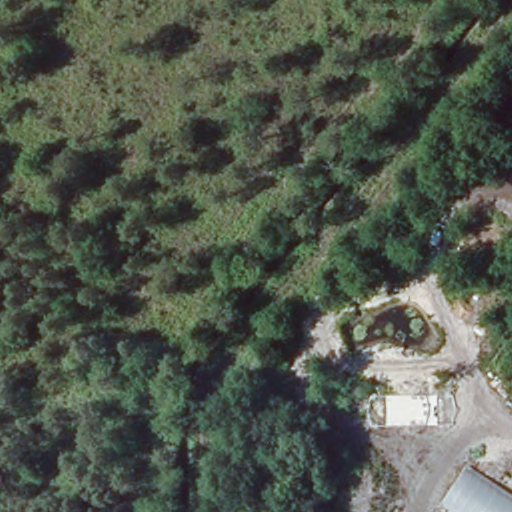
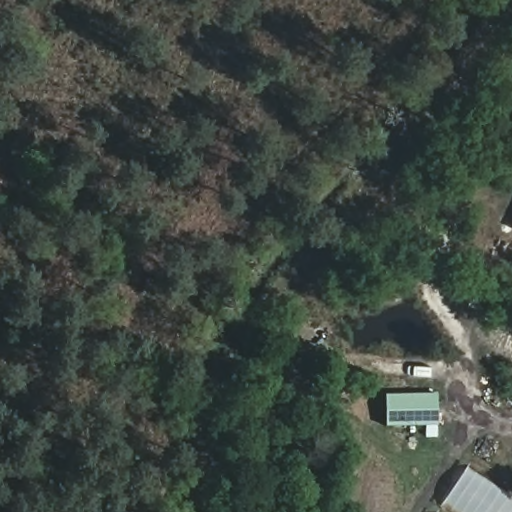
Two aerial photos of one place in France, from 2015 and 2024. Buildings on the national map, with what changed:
new [(386,428),(386,395),(438,394),(439,425),(386,428)]
unchanged [(512,496),(512,512),(436,512),(466,465),(512,496)]

